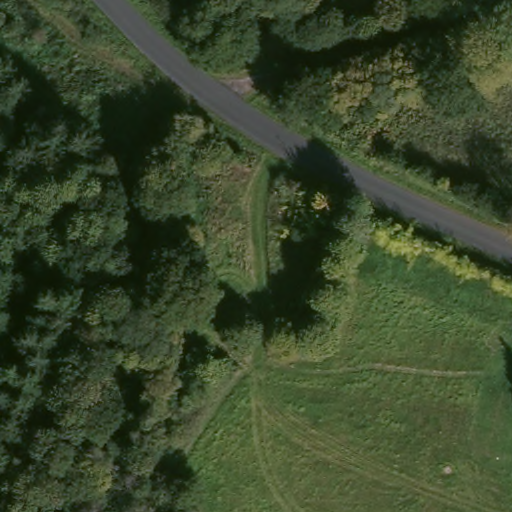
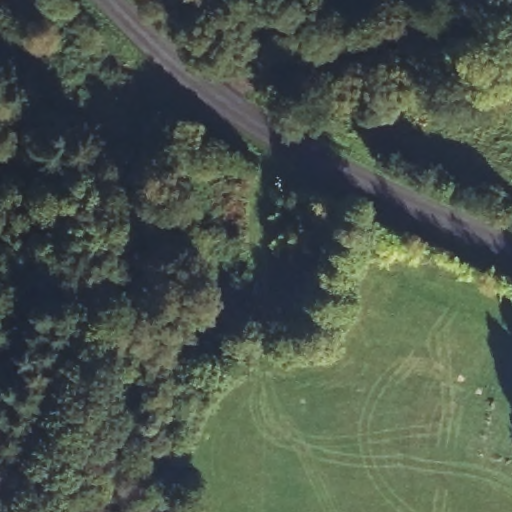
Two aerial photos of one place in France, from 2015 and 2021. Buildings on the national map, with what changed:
[]

